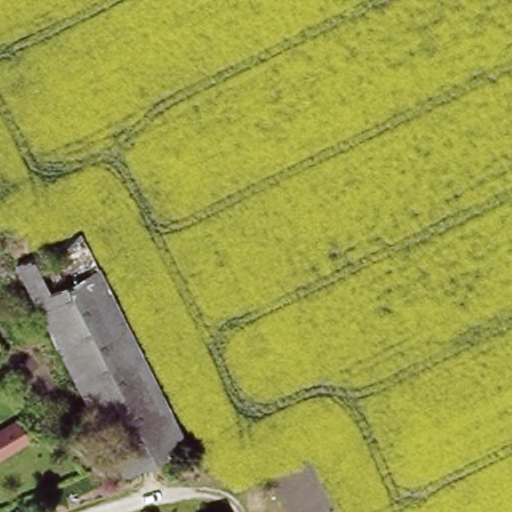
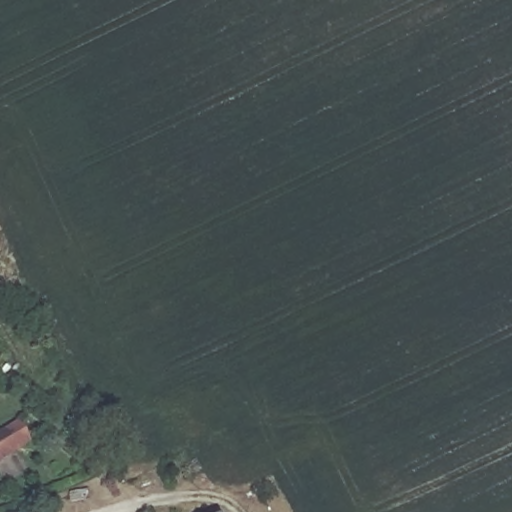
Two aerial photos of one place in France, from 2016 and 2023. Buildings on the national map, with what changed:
demolished [(97,264),(36,294),(23,267),(83,235),(97,264)]
demolished [(97,264),(188,452),(126,482),(36,294),(97,264)]
unchanged [(34,443),(0,465),(0,437),(23,424),(34,443)]

